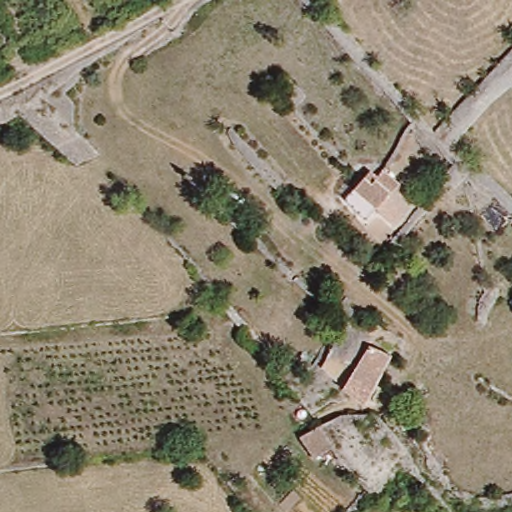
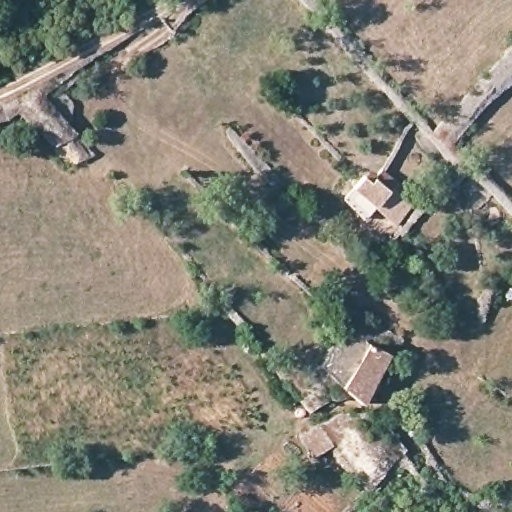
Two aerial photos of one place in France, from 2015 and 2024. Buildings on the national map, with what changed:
unchanged [(393,225),(373,206),(359,220),(338,201),(364,168),(407,200),(393,225)]
unchanged [(382,349),(383,354),(360,398),(340,390),(368,341),(382,349)]
unchanged [(298,439),(327,418),(343,440),(337,443),(315,457),(298,439)]

